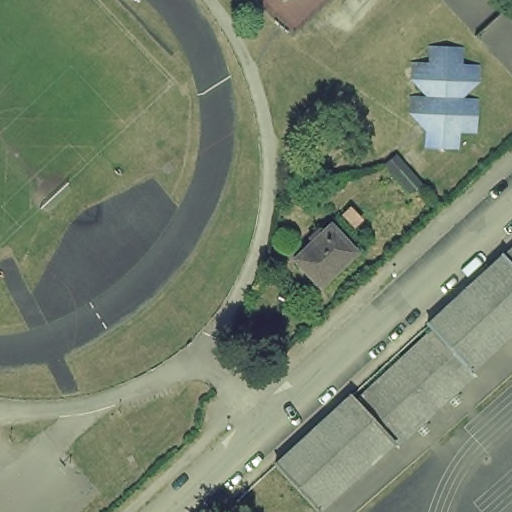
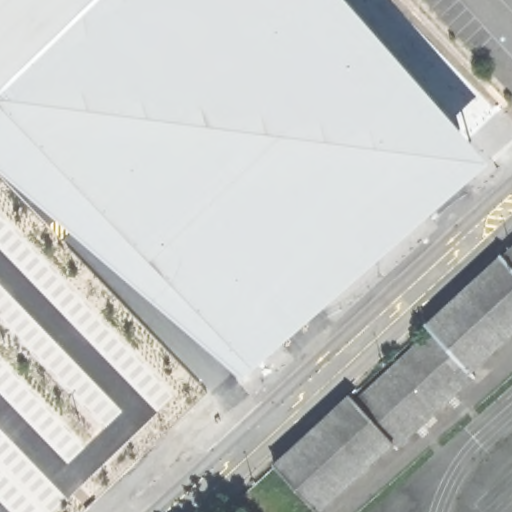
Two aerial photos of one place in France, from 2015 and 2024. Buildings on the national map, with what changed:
new [(0,92),(0,0),(96,0),(0,92)]
new [(499,160),(269,376),(0,154),(0,92),(96,0),(356,0),(499,160)]
demolished [(479,117),(458,145),(427,146),(409,122),(410,65),(433,39),(452,41),(478,71),(479,117)]
demolished [(333,222),(363,258),(320,291),(290,260),(333,222)]
new [(357,402),(432,332),(427,325),(512,247),(512,332),(470,370),(475,376),(455,392),(462,400),(454,407),(446,400),(424,421),(430,429),(422,436),(415,430),(397,447),(391,442),(317,512),(274,465),(350,396),(357,402)]
demolished [(512,255),(512,331),(319,509),(282,475),(278,471),(512,255)]

